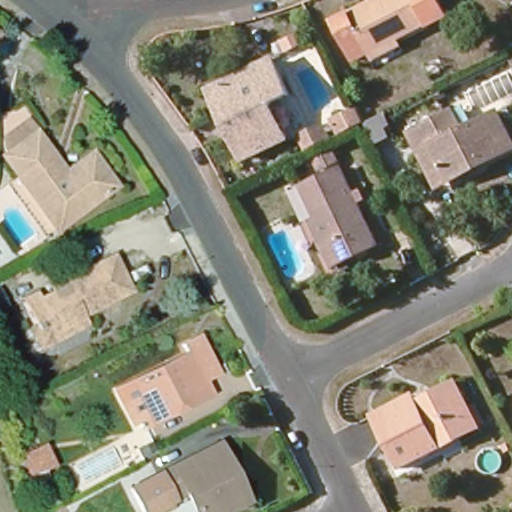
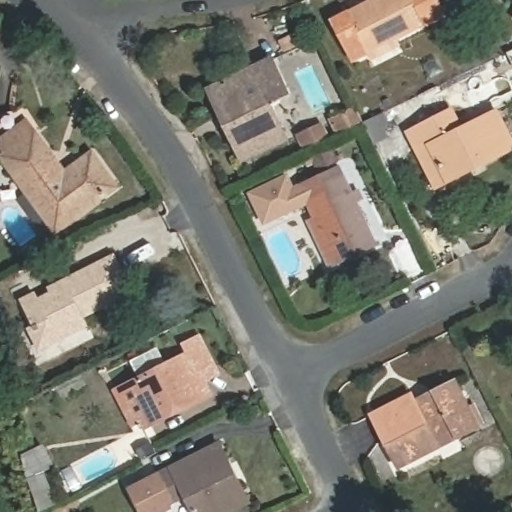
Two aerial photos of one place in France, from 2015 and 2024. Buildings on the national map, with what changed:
unchanged [(351,64),(329,18),(370,0),(441,0),(450,19),(351,64)]
unchanged [(1,31),(0,33),(0,30),(1,31)]
unchanged [(288,96),(270,105),(286,140),(243,160),(227,127),(230,125),(213,90),(220,88),(273,61),(288,96)]
unchanged [(512,65),(511,64),(512,64),(512,65)]
unchanged [(355,111),(364,129),(342,139),(333,122),(355,111)]
unchanged [(410,134),(451,113),(461,130),(498,112),(512,139),(512,151),(480,167),(466,174),(437,189),(410,134)]
unchanged [(0,163),(0,155),(0,123),(19,116),(67,180),(93,161),(117,193),(56,238),(0,163)]
unchanged [(311,221),(318,218),(312,204),(302,184),(340,165),(377,244),(340,262),(332,265),(311,221)]
new [(288,174),(295,187),(302,184),(312,204),(265,225),(250,193),(288,174)]
unchanged [(26,329),(32,325),(20,299),(31,294),(34,300),(50,292),(47,287),(57,282),(110,254),(127,291),(78,315),(81,324),(46,342),(35,347),(26,329)]
unchanged [(122,414),(112,394),(185,359),(180,347),(196,339),(212,370),(215,377),(199,384),(206,399),(184,411),(134,436),(122,414)]
unchanged [(400,469),(374,416),(412,395),(416,403),(456,382),(478,428),(456,439),(440,449),(400,469)]
unchanged [(182,497),(164,506),(165,509),(158,512),(141,512),(130,489),(215,446),(225,466),(245,504),(237,508),(229,512),(190,512),(182,497)]
unchanged [(45,457),(56,478),(30,491),(20,469),(45,457)]

